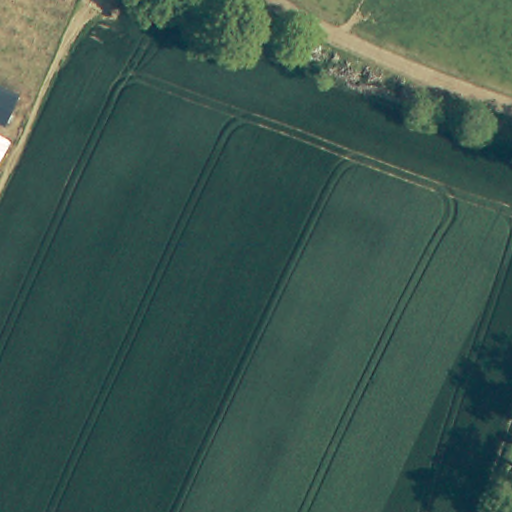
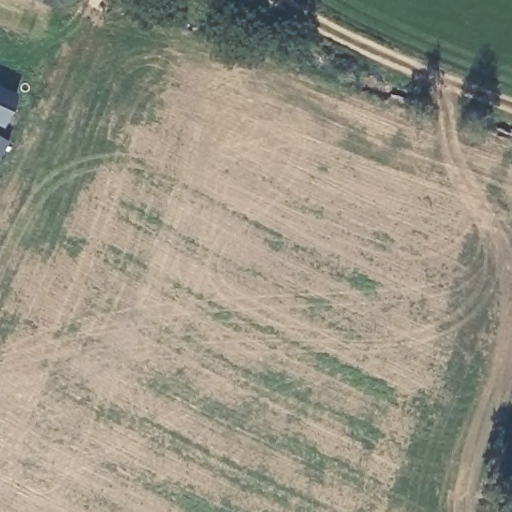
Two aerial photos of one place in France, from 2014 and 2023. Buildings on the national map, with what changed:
unchanged [(0,118),(0,86),(14,91),(0,118)]
unchanged [(0,146),(0,141),(2,142),(0,146)]

